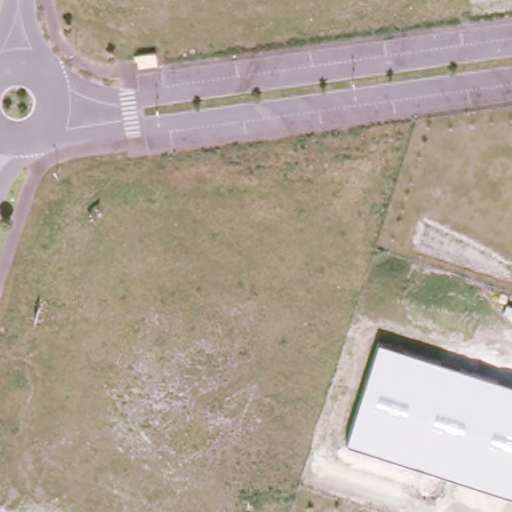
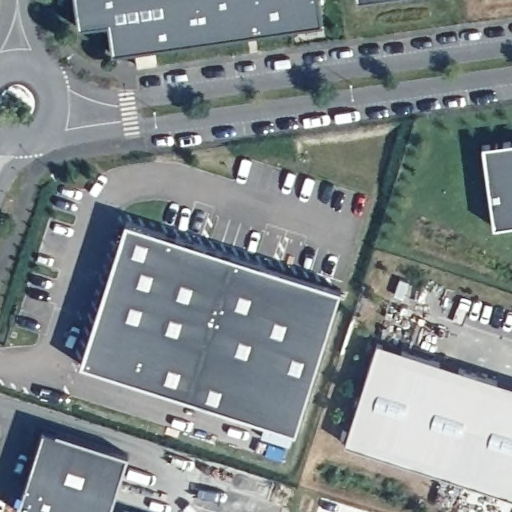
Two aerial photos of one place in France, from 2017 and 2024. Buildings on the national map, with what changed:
new [(85,24),(81,0),(327,0),(330,20),(118,50),(115,20),(85,24)]
new [(358,0),(396,0),(358,5),(358,0)]
new [(164,60),(145,63),(143,51),(163,49),(164,60)]
unchanged [(490,148),(512,145),(512,228),(498,229),(490,148)]
new [(347,284),(303,427),(84,359),(133,218),(347,284)]
unchanged [(512,493),(345,441),(377,340),(512,383),(512,493)]
new [(50,424),(133,452),(113,512),(48,512),(20,503),(50,424)]

